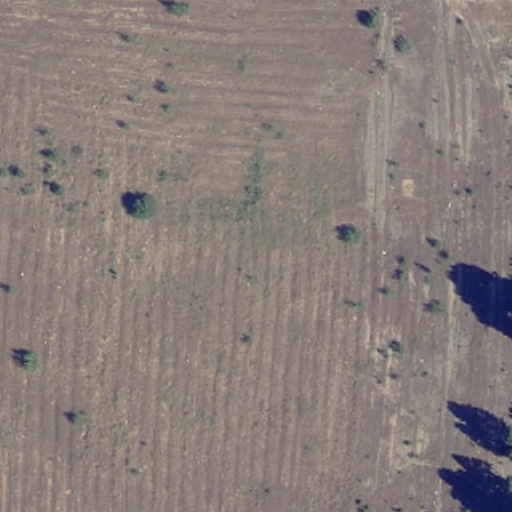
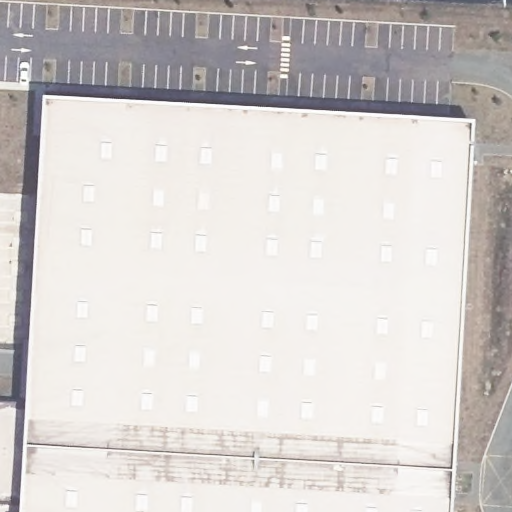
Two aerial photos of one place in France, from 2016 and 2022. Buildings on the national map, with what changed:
new [(450,512),(22,512),(23,505),(0,505),(0,404),(27,403),(43,107),(471,130),(450,512)]

